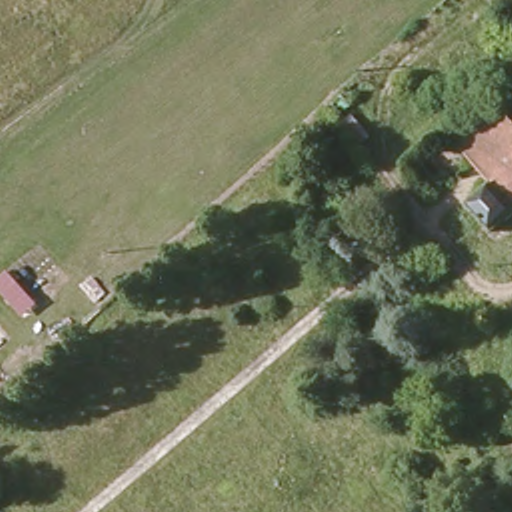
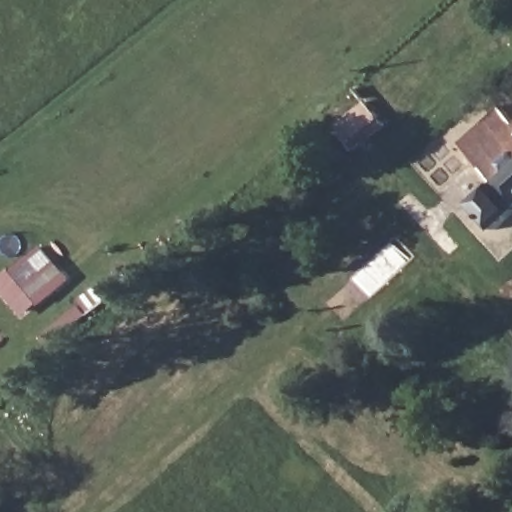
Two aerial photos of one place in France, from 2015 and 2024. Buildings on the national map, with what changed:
unchanged [(481,0),(486,0),(483,2),(481,0)]
unchanged [(494,230),(470,203),(493,182),(461,144),(504,106),(512,115),(512,215),(494,230)]
unchanged [(366,145),(346,123),(356,114),(376,137),(366,145)]
new [(0,279),(43,245),(71,281),(23,319),(0,290),(0,279)]

